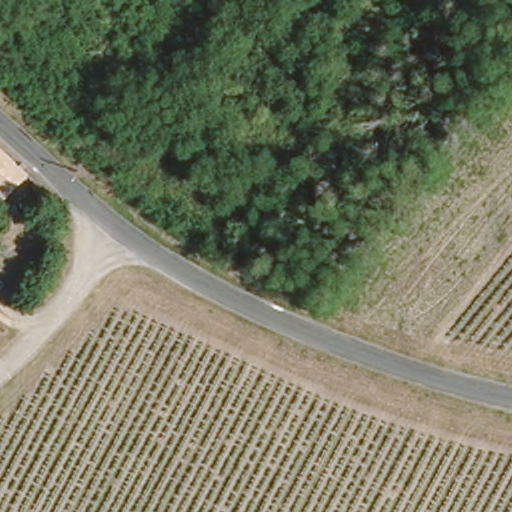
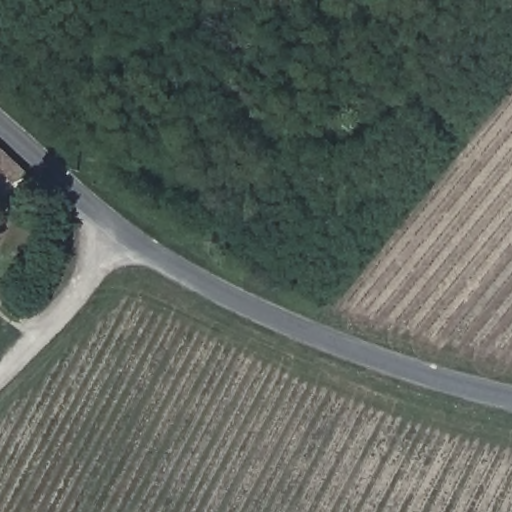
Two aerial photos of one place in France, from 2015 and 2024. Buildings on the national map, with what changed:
unchanged [(5,154),(36,185),(18,202),(0,186),(0,149),(5,154)]

